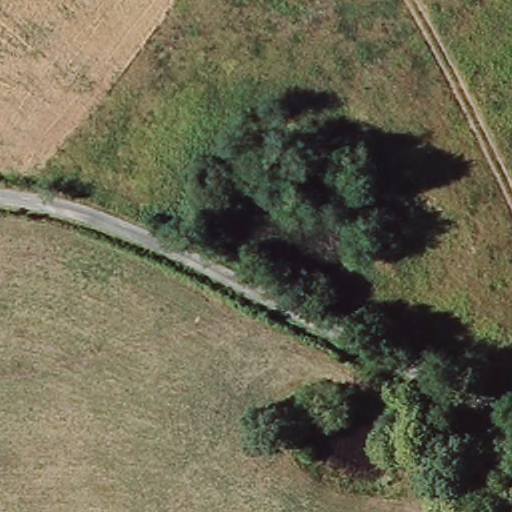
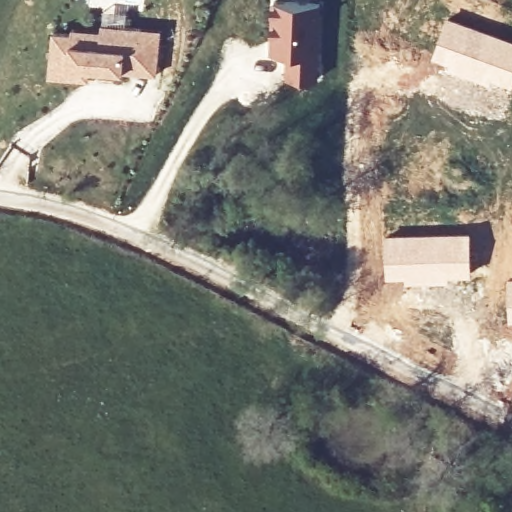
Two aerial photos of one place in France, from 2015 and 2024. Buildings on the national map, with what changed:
new [(274,1),(304,2),(296,78),(288,78),(289,54),(272,53),(274,1)]
new [(304,2),(320,2),(316,79),(296,78),(304,2)]
new [(49,77),(53,32),(71,34),(71,30),(100,32),(100,25),(103,8),(127,11),(126,27),(140,30),(160,32),(159,37),(155,76),(121,73),(89,70),(88,81),(49,77)]
new [(512,39),(512,86),(511,87),(475,76),(431,56),(445,15),(512,39)]
new [(471,230),(472,278),(458,280),(459,286),(424,286),(386,278),(382,234),(471,230)]
new [(512,325),(505,325),(504,277),(512,277),(512,325)]

